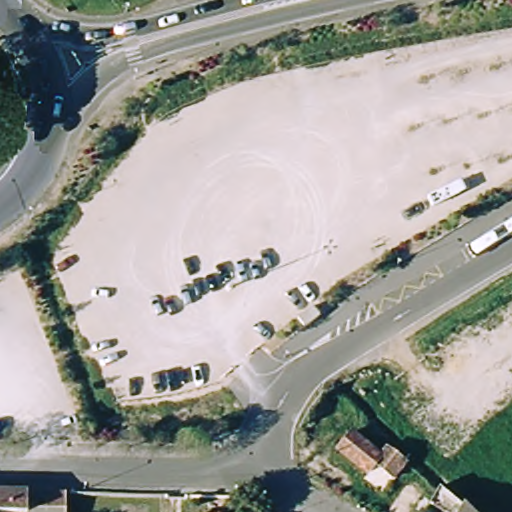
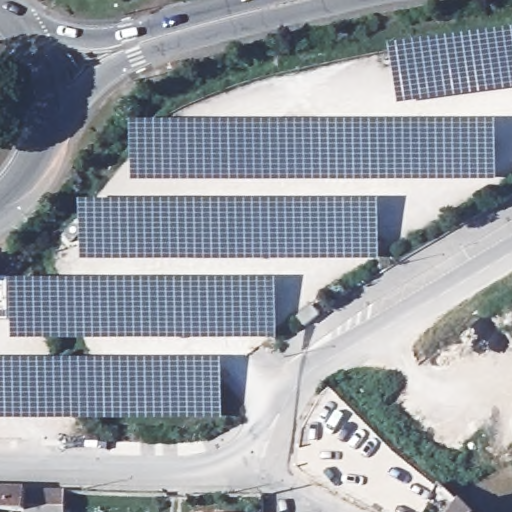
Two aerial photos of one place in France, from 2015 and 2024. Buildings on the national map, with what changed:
new [(400,105),(392,46),(512,30),(512,89),(400,105)]
demolished [(297,83),(285,85),(281,63),(293,61),(297,83)]
new [(497,123),(497,182),(134,181),(134,123),(288,123),(497,123)]
new [(382,200),(380,263),(83,257),(85,200),(382,200)]
new [(13,281),(278,281),(278,340),(13,340),(13,281)]
unchanged [(301,317),(305,315),(316,306),(323,315),(313,323),(308,326),(301,317)]
new [(222,421),(0,417),(0,359),(223,363),(222,421)]
unchanged [(395,446),(395,448),(412,462),(403,475),(399,472),(394,477),(376,463),(368,473),(339,450),(354,432),(381,454),(391,441),(395,446)]
unchanged [(437,486),(467,512),(443,512),(429,503),(437,486)]
unchanged [(0,511),(0,488),(67,490),(66,512),(0,511)]

